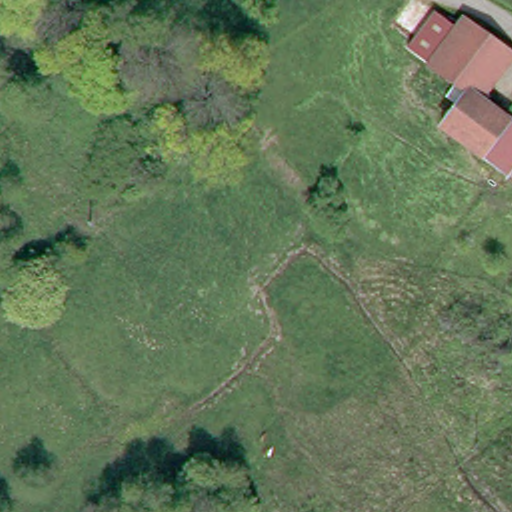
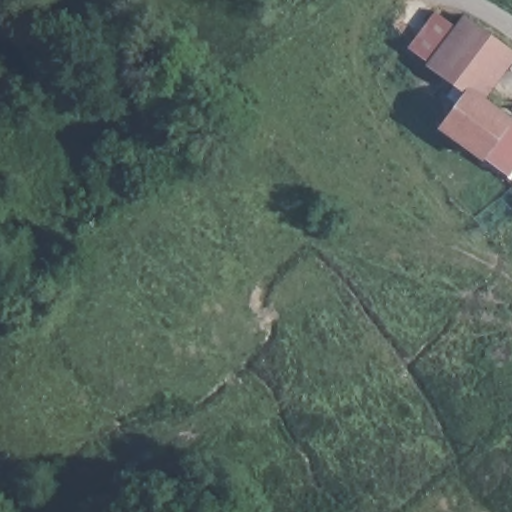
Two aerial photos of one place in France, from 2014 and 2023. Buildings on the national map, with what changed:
unchanged [(488,162),(446,133),(468,98),(422,64),(434,48),(463,13),(512,51),(512,53),(480,100),(512,121),(512,159),(503,172),(488,162)]

